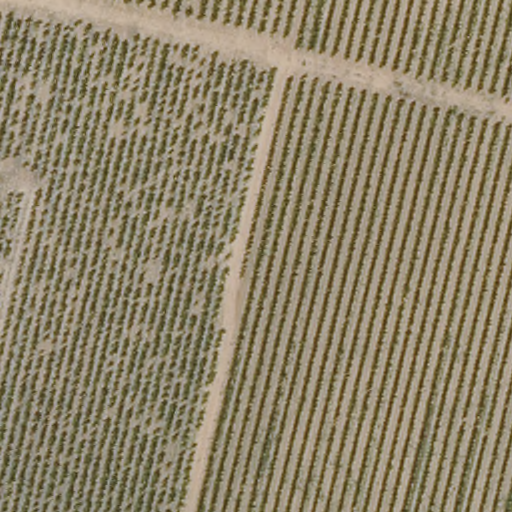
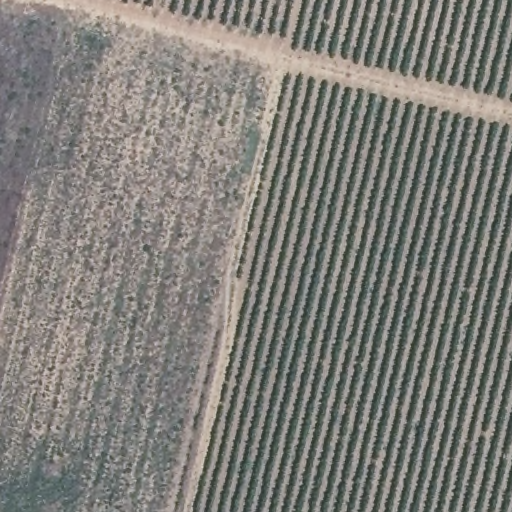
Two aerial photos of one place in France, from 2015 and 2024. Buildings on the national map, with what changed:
[]

